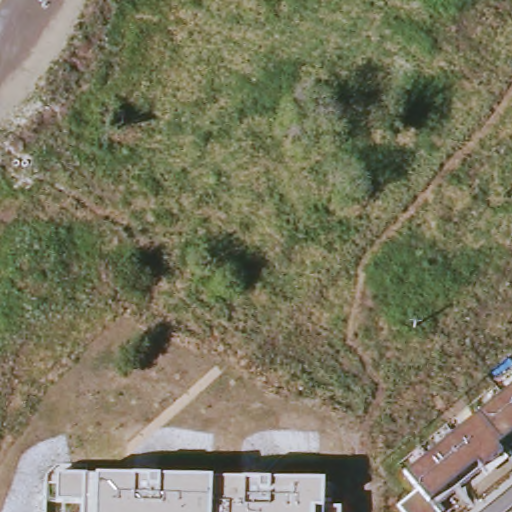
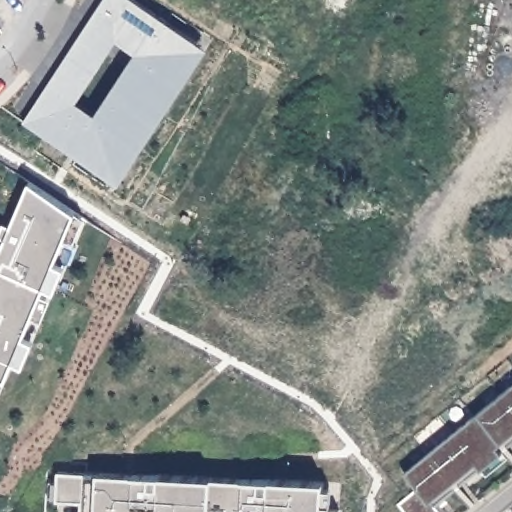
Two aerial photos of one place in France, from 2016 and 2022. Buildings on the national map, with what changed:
new [(215,54),(124,187),(24,118),(105,0),(137,0),(215,54)]
new [(7,239),(0,236),(0,234),(5,223),(12,226),(31,182),(77,213),(0,398),(0,254),(7,239)]
demolished [(385,391),(361,411),(345,391),(370,372),(385,391)]
unchanged [(405,512),(399,503),(419,489),(407,473),(512,386),(512,434),(497,446),(501,451),(507,457),(486,475),(482,467),(478,463),(429,501),(439,512),(405,512)]
unchanged [(57,499),(58,472),(97,474),(211,478),(324,483),(322,511),(339,510),(339,512),(83,512),(83,498),(57,499)]

